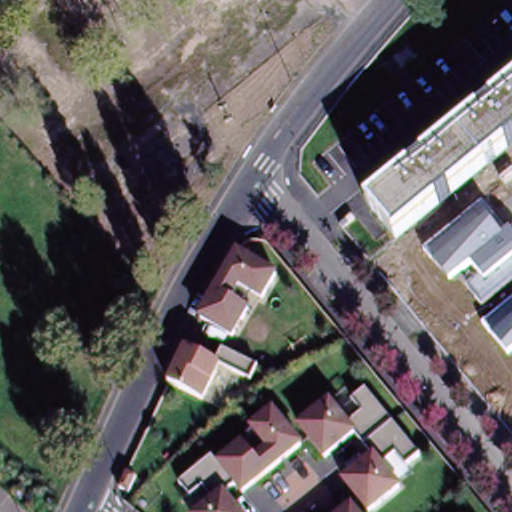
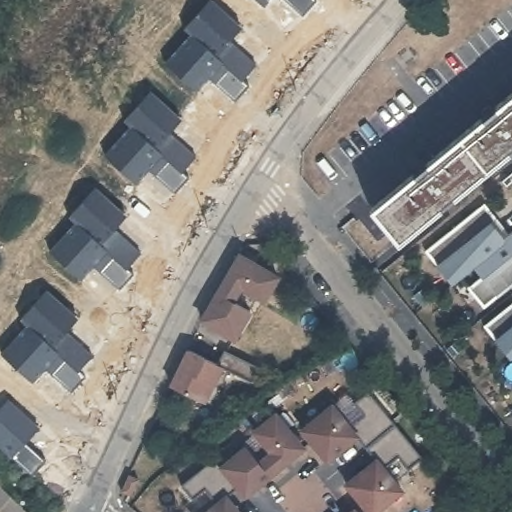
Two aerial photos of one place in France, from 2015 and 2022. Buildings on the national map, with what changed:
new [(260,8),(251,0),(267,0),(260,8)]
new [(279,0),(309,0),(313,3),(299,19),(279,0)]
new [(211,85),(205,80),(193,94),(161,65),(187,36),(180,30),(207,1),(238,30),(226,43),(232,48),(252,67),(239,82),(245,89),(232,104),(211,85)]
unchanged [(398,241),(372,207),(512,89),(512,148),(398,241)]
new [(151,177),(145,172),(159,156),(132,185),(101,157),(127,128),(120,122),(147,94),(178,121),(165,135),(172,141),(192,159),(179,175),(185,181),(171,196),(151,177)]
new [(96,274),(90,268),(77,282),(46,254),(72,225),(65,219),(92,190),(123,218),(110,232),(117,237),(137,256),(124,271),(130,277),(116,292),(96,274)]
unchanged [(466,287),(481,276),(472,263),(450,282),(425,250),(483,203),(506,231),(512,228),(512,282),(482,305),(466,287)]
unchanged [(281,276),(265,305),(243,291),(236,302),(251,311),(234,342),(197,322),(239,252),(281,276)]
new [(41,371),(30,385),(0,357),(0,354),(25,327),(17,322),(44,292),(75,321),(62,334),(69,340),(90,358),(75,373),(82,380),(69,395),(47,377),(41,371)]
unchanged [(509,355),(485,324),(512,303),(512,353),(509,355)]
unchanged [(259,367),(253,381),(223,367),(206,404),(170,386),(188,349),(219,362),(224,351),(259,367)]
unchanged [(410,466),(403,456),(378,476),(394,497),(377,512),(374,512),(350,481),(375,458),(361,437),(330,460),(306,425),(337,401),(353,424),(366,413),(359,399),(372,390),(424,455),(410,466)]
new [(36,431),(23,446),(44,463),(30,478),(0,451),(0,408),(5,402),(36,431)]
unchanged [(207,490),(191,499),(182,485),(222,455),(229,460),(250,445),(260,457),(295,431),(308,448),(289,462),(286,458),(268,472),(272,476),(236,500),(245,512),(208,512),(217,505),(207,490)]
unchanged [(358,512),(354,512),(356,510),(358,512)]

